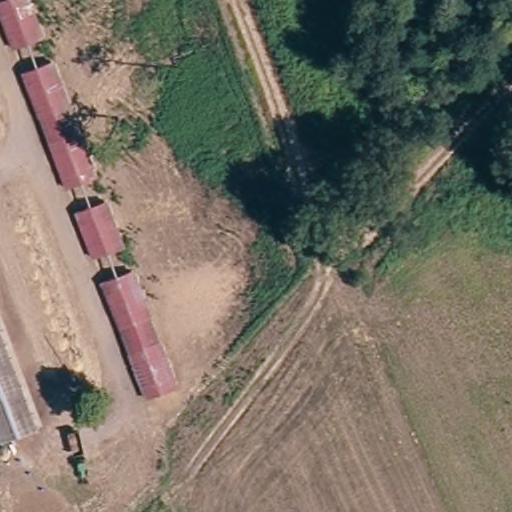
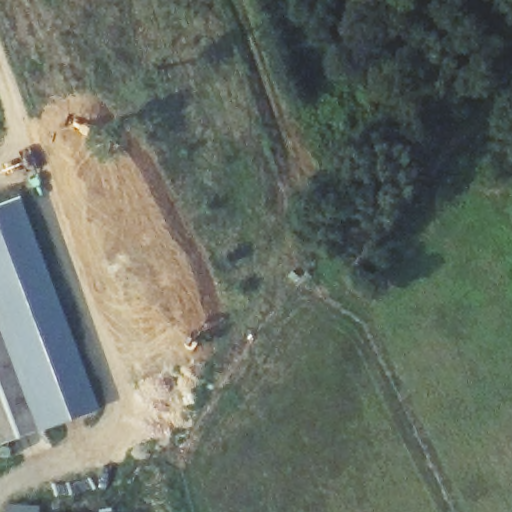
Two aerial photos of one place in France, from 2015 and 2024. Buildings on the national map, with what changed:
demolished [(8,0),(30,0),(44,37),(17,47),(0,3),(8,0)]
demolished [(97,180),(69,190),(27,70),(53,61),(97,180)]
new [(102,408),(36,431),(0,333),(0,204),(21,196),(102,408)]
demolished [(106,205),(123,252),(96,262),(79,215),(106,205)]
demolished [(176,390),(150,400),(106,283),(133,272),(176,390)]
unchanged [(40,442),(3,456),(0,448),(0,333),(40,442)]

